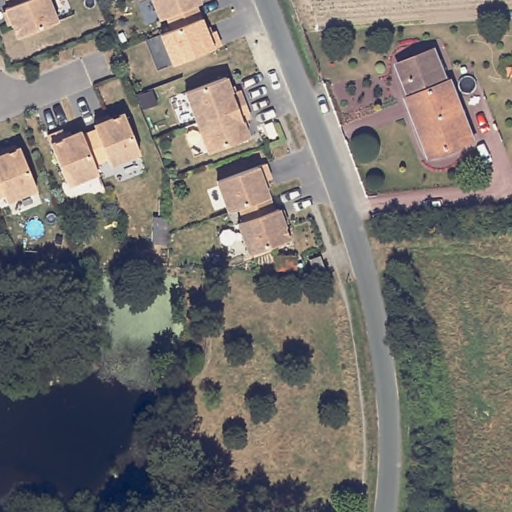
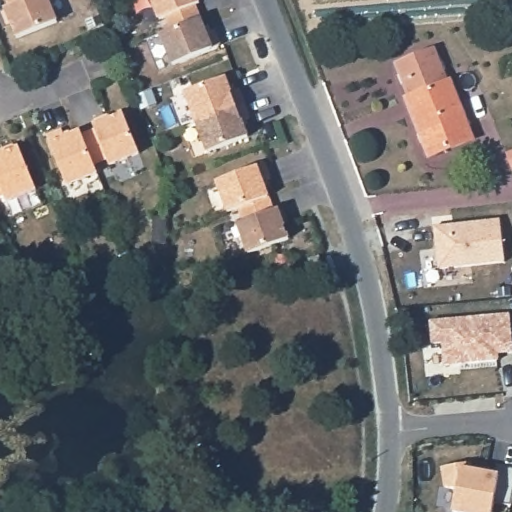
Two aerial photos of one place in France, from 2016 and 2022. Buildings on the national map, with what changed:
unchanged [(9,7),(7,3),(6,0),(47,0),(50,7),(56,23),(16,39),(4,9),(9,7)]
unchanged [(159,30),(171,26),(166,14),(165,12),(163,14),(159,15),(158,13),(155,5),(153,0),(197,0),(194,1),(201,17),(206,30),(213,26),(219,41),(172,61),(159,30)]
unchanged [(451,79),(457,93),(463,90),(469,105),(462,107),(473,138),(430,156),(407,96),(410,95),(397,63),(435,48),(448,80),(451,79)]
unchanged [(505,68),(512,68),(512,75),(506,75),(505,68)]
unchanged [(229,145),(207,153),(203,142),(195,123),(184,93),(225,78),(231,94),(238,91),(243,105),(249,120),(241,122),(247,138),(229,145)]
unchanged [(51,137),(66,131),(69,139),(85,132),(86,136),(98,131),(99,130),(98,126),(127,114),(136,135),(144,154),(114,166),(111,160),(98,165),(102,174),(71,186),(51,137)]
unchanged [(6,202),(3,195),(0,197),(0,156),(1,155),(3,150),(12,146),(17,149),(19,149),(35,190),(6,202)]
unchanged [(247,255),(236,225),(243,222),(238,209),(227,212),(216,182),(264,165),(269,180),(262,182),(272,211),(277,210),(288,240),(247,255)]
new [(500,220),(504,262),(439,270),(434,227),(500,220)]
unchanged [(315,275),(314,271),(310,258),(321,255),(326,271),(326,272),(315,275)]
new [(512,341),(512,353),(498,353),(498,360),(444,365),(442,342),(432,343),(430,321),(509,314),(512,341)]
new [(472,471),(495,475),(496,465),(512,468),(512,499),(511,505),(494,502),(492,512),(458,512),(452,511),(456,489),(446,487),(442,467),(470,462),(472,471)]

